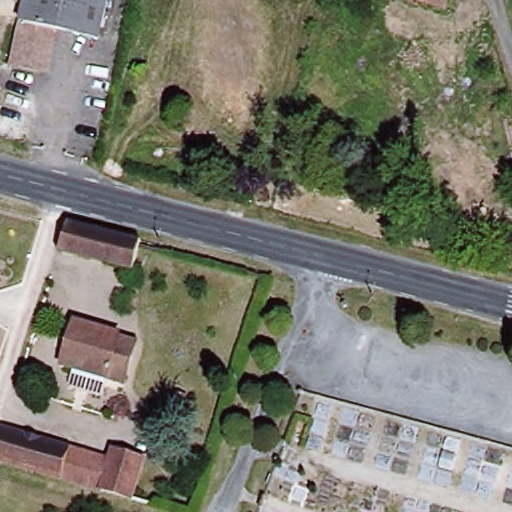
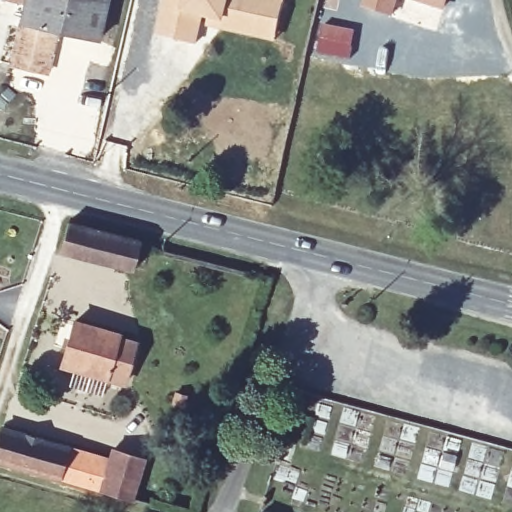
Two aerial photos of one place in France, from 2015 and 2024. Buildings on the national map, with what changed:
unchanged [(102,39),(60,30),(51,72),(16,64),(29,5),(20,3),(21,0),(30,0),(111,0),(102,39)]
new [(260,0),(254,29),(196,16),(190,45),(172,41),(179,12),(161,8),(163,0),(260,0)]
unchanged [(429,0),(450,0),(447,6),(429,0)]
new [(320,22),(355,29),(349,60),(315,53),(320,22)]
unchanged [(135,269),(62,251),(72,222),(145,240),(135,269)]
unchanged [(74,381),(79,363),(66,360),(80,316),(124,329),(122,332),(140,337),(129,378),(111,373),(106,390),(74,381)]
unchanged [(135,498),(134,498),(106,490),(106,491),(0,460),(0,449),(6,427),(115,460),(117,450),(145,459),(166,465),(155,503),(135,498)]

